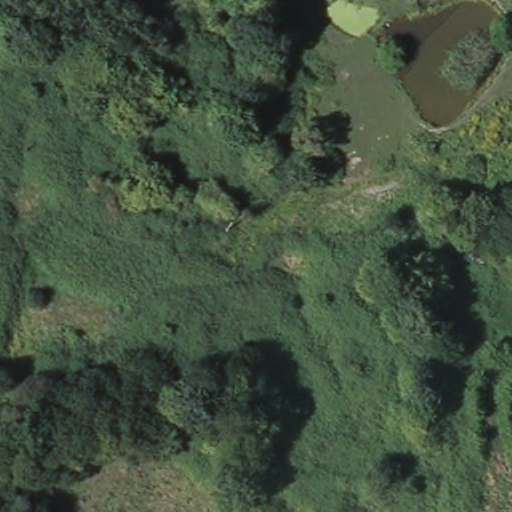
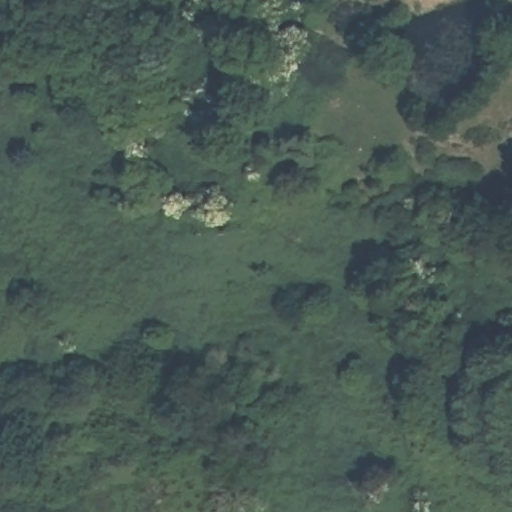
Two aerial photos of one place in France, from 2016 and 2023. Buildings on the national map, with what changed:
unchanged [(221,188),(218,213),(175,207),(178,184),(221,188)]

